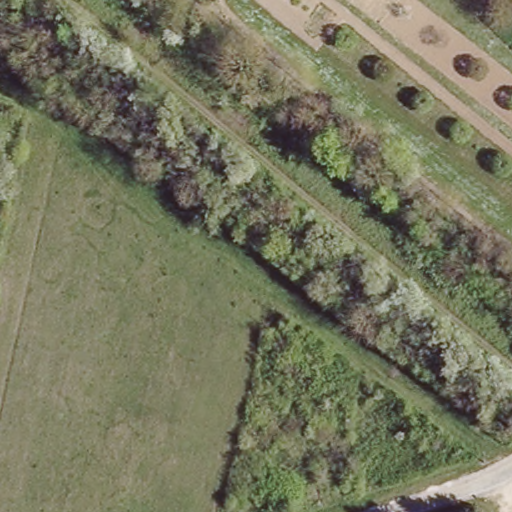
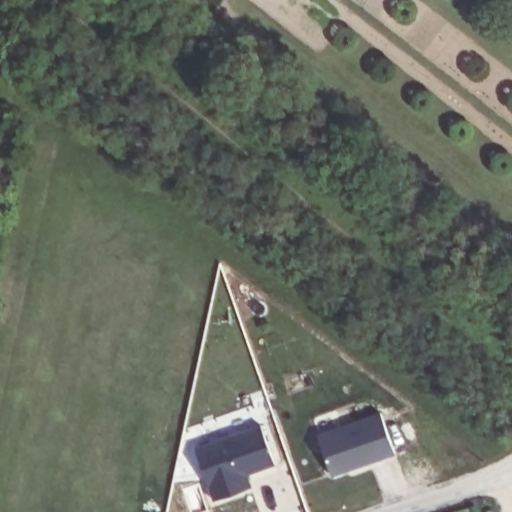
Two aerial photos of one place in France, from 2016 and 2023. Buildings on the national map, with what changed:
new [(382,413),(395,455),(332,476),(320,433),(382,413)]
new [(262,425),(276,465),(249,475),(253,486),(214,499),(197,445),(262,425)]

